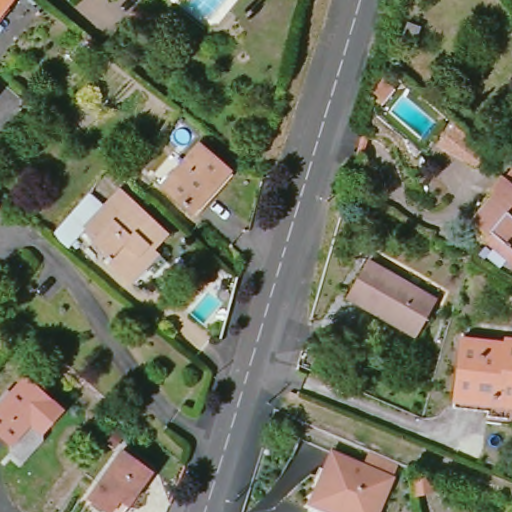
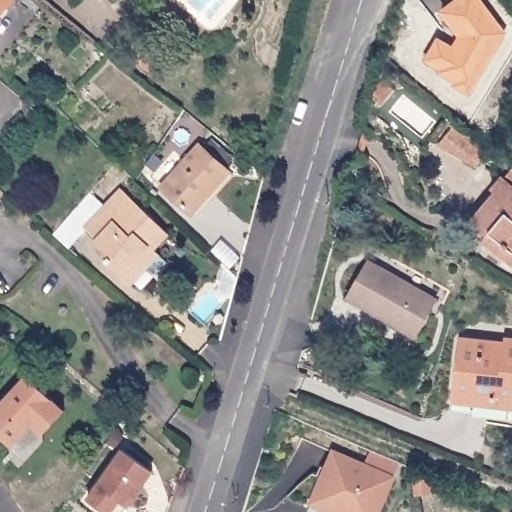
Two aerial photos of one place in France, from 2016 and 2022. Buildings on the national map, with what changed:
unchanged [(0,0),(9,0),(0,11),(0,0)]
new [(512,34),(512,49),(467,102),(454,91),(457,89),(442,76),(444,73),(431,61),(446,44),(460,55),(468,45),(455,20),(488,2),(512,34)]
unchanged [(455,124),(488,151),(475,169),(439,143),(455,124)]
unchanged [(162,186),(199,145),(227,172),(191,213),(162,186)]
unchanged [(472,220),(494,192),(491,189),(502,176),(512,184),(512,262),(484,239),(488,233),(472,220)]
unchanged [(94,245),(98,240),(87,229),(122,190),(167,233),(152,251),(148,247),(139,257),(142,260),(128,276),(94,245)]
unchanged [(390,315),(387,319),(350,298),(372,262),(435,298),(417,330),(390,315)]
unchanged [(487,421),(489,399),(474,397),(472,402),(456,400),(464,338),(510,342),(510,337),(512,337),(512,424),(487,421)]
unchanged [(344,370),(340,379),(326,373),(330,363),(344,370)]
unchanged [(44,428),(45,436),(24,459),(11,448),(11,441),(0,432),(0,399),(25,371),(64,405),(44,428)]
unchanged [(123,450),(152,473),(129,506),(127,507),(119,502),(112,512),(105,512),(87,499),(99,481),(123,450)]
unchanged [(306,502),(310,493),(329,450),(390,477),(374,512),(329,512),(306,502)]
unchanged [(427,472),(428,481),(439,482),(439,494),(411,497),(410,472),(427,472)]

